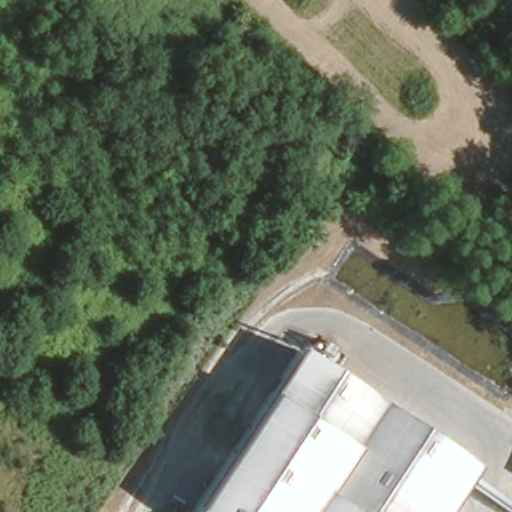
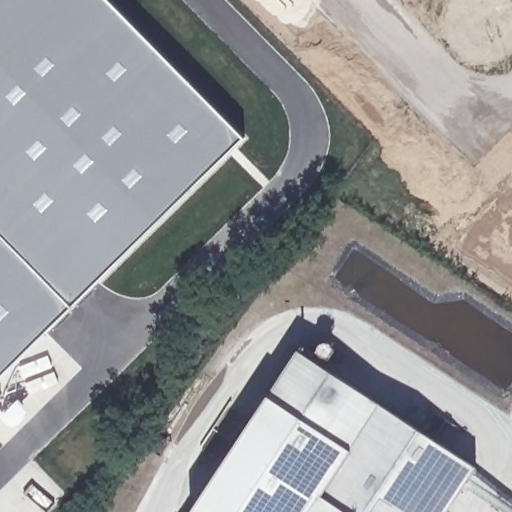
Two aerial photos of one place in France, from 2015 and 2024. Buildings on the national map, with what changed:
new [(0,378),(0,0),(109,0),(244,138),(0,378)]
unchanged [(446,512),(192,512),(301,349),(474,469),(446,512)]

